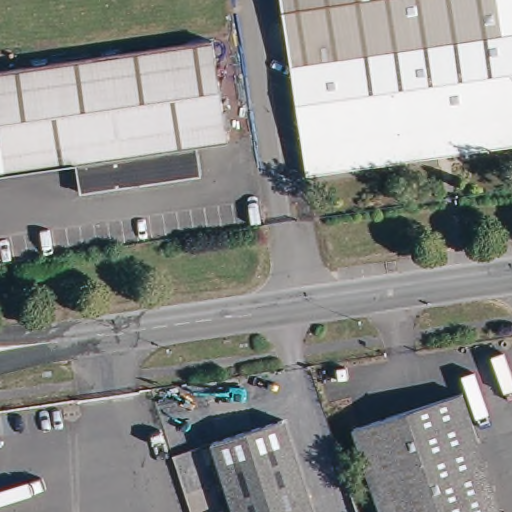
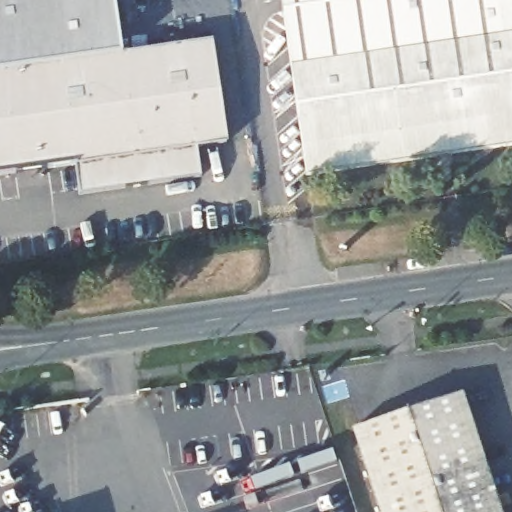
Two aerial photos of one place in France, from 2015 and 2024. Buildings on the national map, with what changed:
new [(0,71),(0,0),(114,0),(123,53),(0,71)]
unchanged [(281,0),(512,0),(512,146),(306,176),(281,0)]
unchanged [(200,176),(80,194),(75,165),(0,176),(0,71),(211,40),(226,142),(196,147),(200,176)]
unchanged [(353,429),(461,394),(500,512),(379,512),(353,429)]
unchanged [(209,444),(282,421),(311,512),(231,512),(209,444)]

